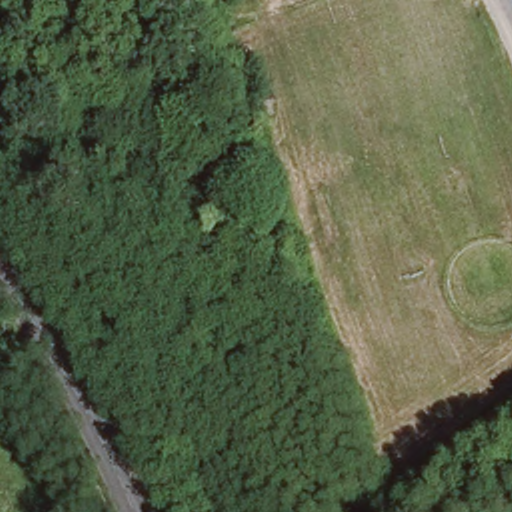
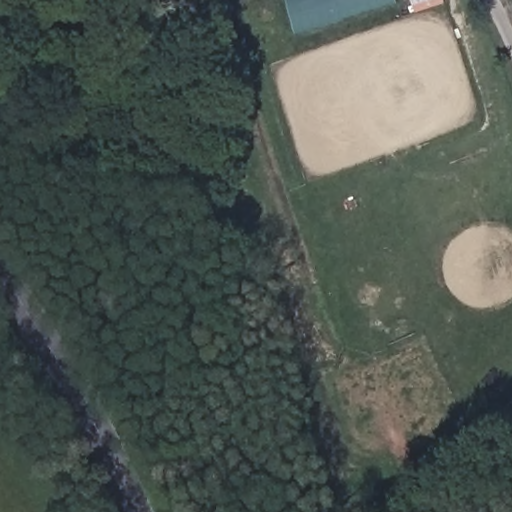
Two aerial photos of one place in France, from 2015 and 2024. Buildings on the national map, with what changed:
new [(285,0),(396,0),(397,4),(294,33),(285,0)]

